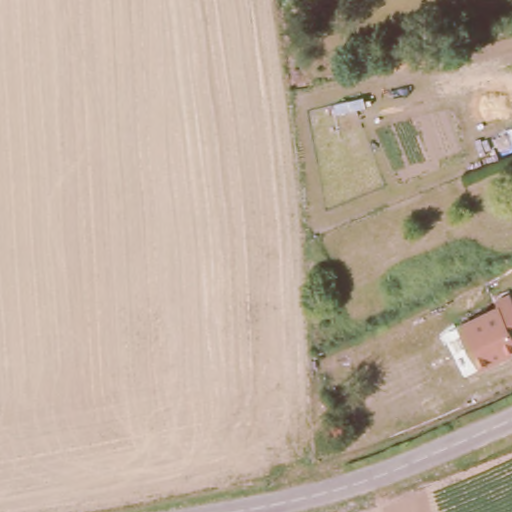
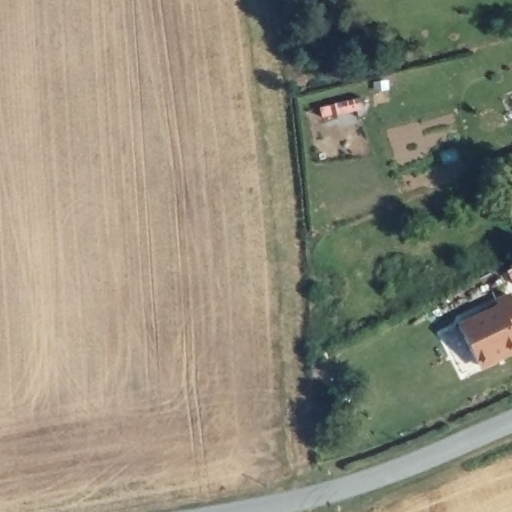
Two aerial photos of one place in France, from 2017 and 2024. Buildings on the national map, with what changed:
unchanged [(512,345),(475,361),(457,323),(500,305),(498,300),(512,294),(512,345)]

